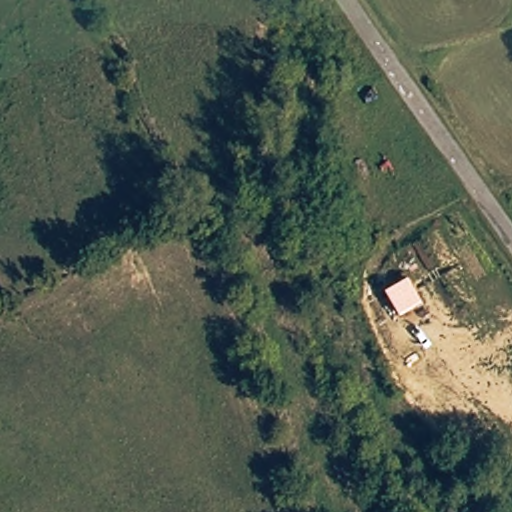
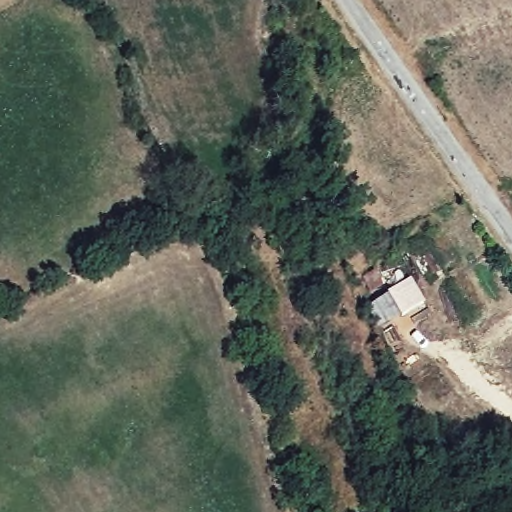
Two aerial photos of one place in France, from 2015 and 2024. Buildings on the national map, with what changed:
unchanged [(380,328),(367,306),(388,295),(386,291),(410,278),(425,302),(380,328)]

